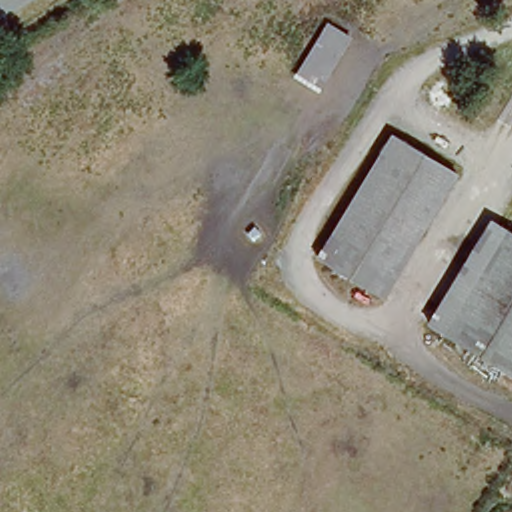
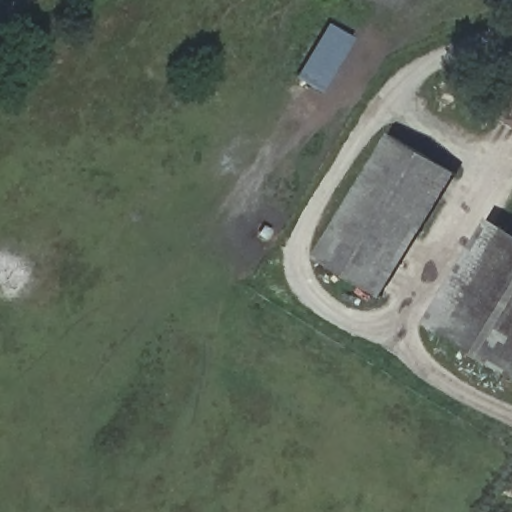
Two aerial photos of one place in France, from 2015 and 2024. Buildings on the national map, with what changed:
unchanged [(323,21),(352,39),(318,95),(290,81),(323,21)]
unchanged [(456,173),(380,297),(316,257),(392,132),(456,173)]
unchanged [(437,323),(496,224),(512,234),(512,373),(437,323)]

